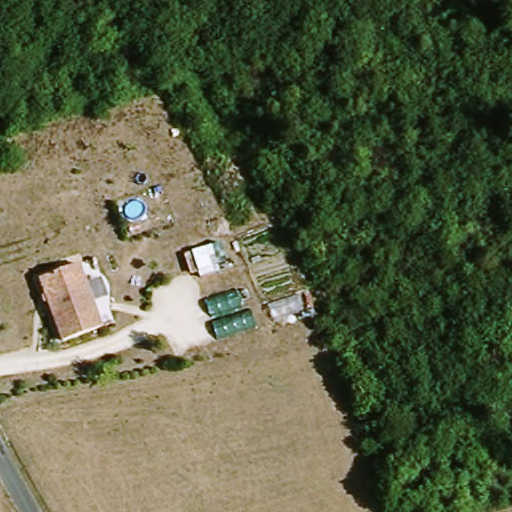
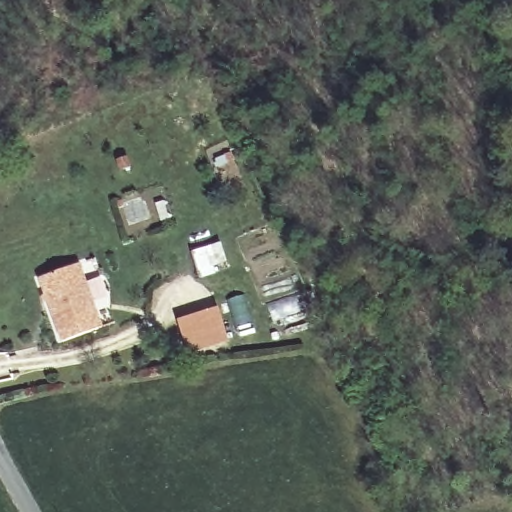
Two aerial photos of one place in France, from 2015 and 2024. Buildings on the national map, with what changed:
unchanged [(223,244),(228,262),(218,266),(219,272),(202,277),(193,250),(223,244)]
unchanged [(67,345),(43,282),(81,266),(105,328),(67,345)]
new [(191,356),(178,322),(216,308),(228,342),(191,356)]

